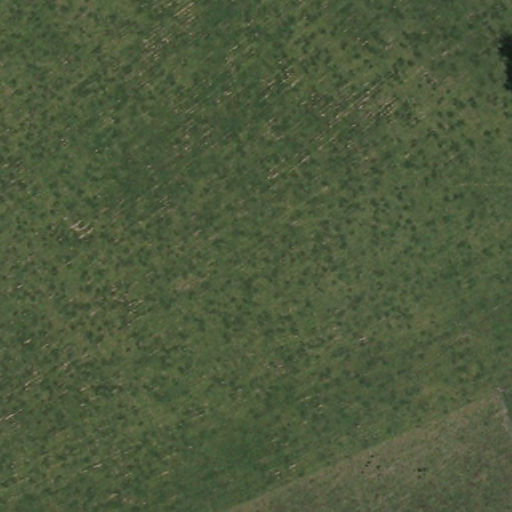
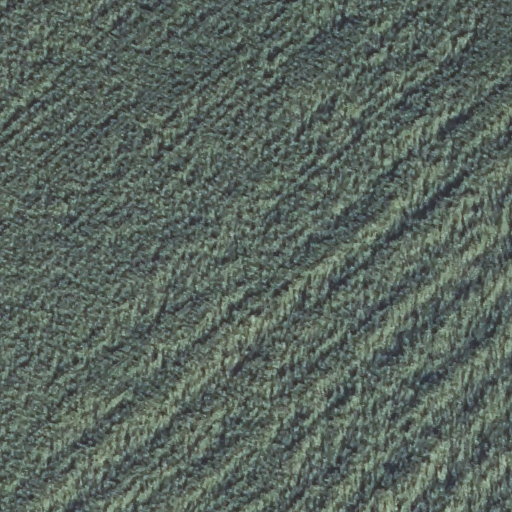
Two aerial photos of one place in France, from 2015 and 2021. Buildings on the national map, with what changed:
[]

